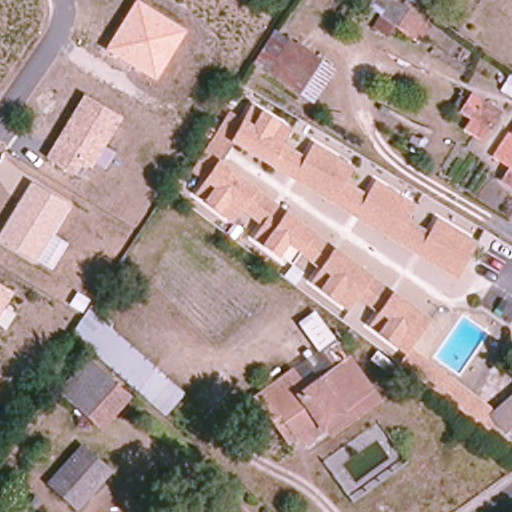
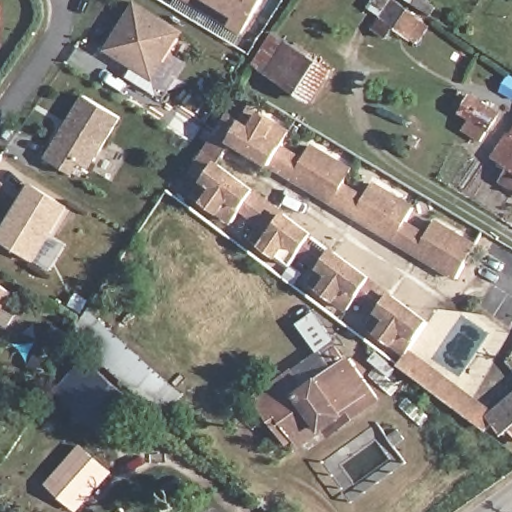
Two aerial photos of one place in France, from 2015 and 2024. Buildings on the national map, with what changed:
unchanged [(136,0),(137,0),(187,30),(154,79),(105,49),(136,0)]
new [(185,0),(263,0),(242,35),(185,0)]
unchanged [(399,0),(427,24),(417,39),(397,29),(393,38),(374,29),(381,14),(370,8),(374,0),(399,0)]
unchanged [(324,69),(305,98),(264,72),(284,43),(324,69)]
unchanged [(83,164),(75,174),(46,155),(84,94),(123,118),(92,168),(83,164)]
unchanged [(463,133),(469,120),(459,114),(472,96),(501,110),(481,141),(463,133)]
unchanged [(404,354),(366,328),(377,310),(356,297),(345,310),(309,285),(320,269),(299,253),(289,267),(252,241),(259,224),(241,209),(234,219),(219,208),(215,214),(197,202),(200,193),(195,188),(201,180),(190,175),(227,111),(242,119),(249,103),(287,129),(280,144),(303,158),(307,143),(349,167),(341,182),(364,195),(369,180),(409,205),(403,218),(426,232),(432,218),(473,241),(455,278),(230,143),(219,163),(424,319),(404,354)]
unchanged [(497,156),(512,132),(512,166),(497,156)]
unchanged [(512,167),(512,186),(504,180),(512,167)]
unchanged [(0,233),(31,182),(69,206),(36,259),(0,238),(0,233)]
unchanged [(0,315),(0,284),(14,293),(0,315)]
unchanged [(88,309),(94,313),(101,303),(121,319),(114,329),(179,391),(156,417),(66,337),(88,309)]
unchanged [(483,429),(400,366),(408,349),(491,411),(483,429)]
unchanged [(338,418),(327,425),(303,443),(267,398),(296,377),(305,389),(348,357),(379,398),(344,424),(338,418)]
unchanged [(121,396),(94,428),(53,392),(80,360),(121,396)]
unchanged [(509,431),(492,412),(512,395),(512,428),(509,431)]
unchanged [(74,509),(44,483),(79,444),(109,469),(74,509)]

